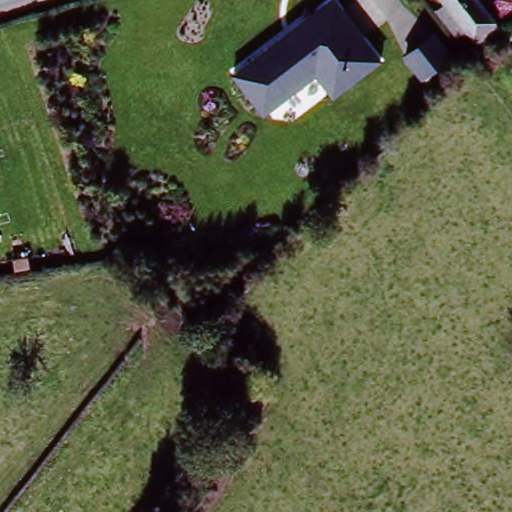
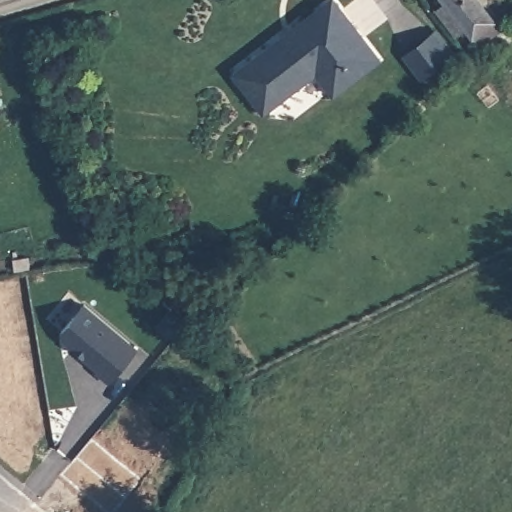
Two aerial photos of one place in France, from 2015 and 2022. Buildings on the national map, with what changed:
unchanged [(338,0),(383,58),(334,91),(320,74),(268,110),(235,74),(333,0),(338,0)]
unchanged [(482,0),(505,30),(481,49),(443,0),(482,0)]
new [(140,349),(110,384),(57,335),(85,302),(140,349)]

